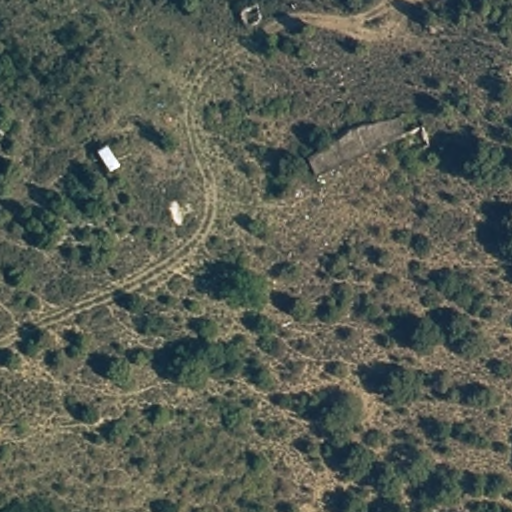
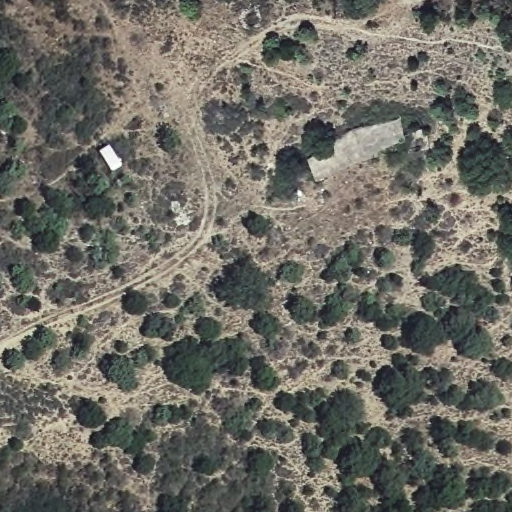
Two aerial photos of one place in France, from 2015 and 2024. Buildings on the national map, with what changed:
unchanged [(307,157),(350,128),(398,115),(407,130),(423,122),(430,142),(409,154),(405,142),(317,177),(307,157)]

